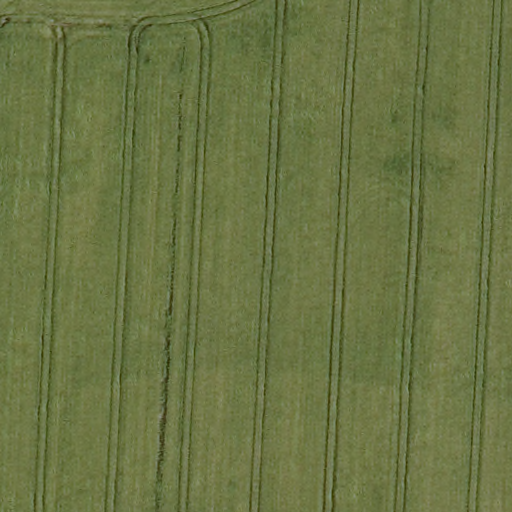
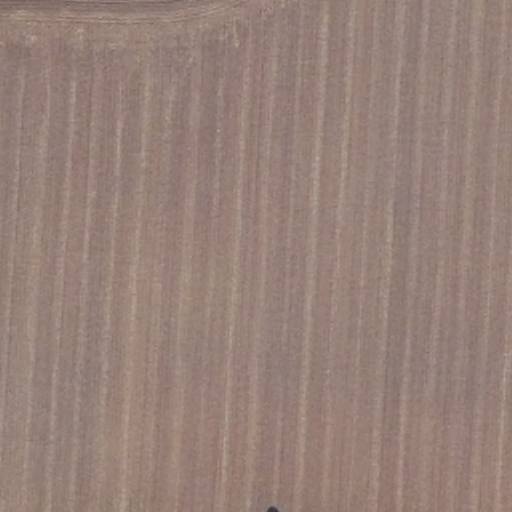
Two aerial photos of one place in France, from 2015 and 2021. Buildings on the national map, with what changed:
[]

